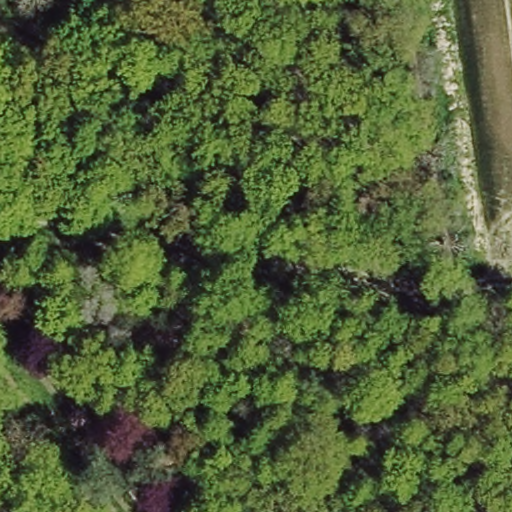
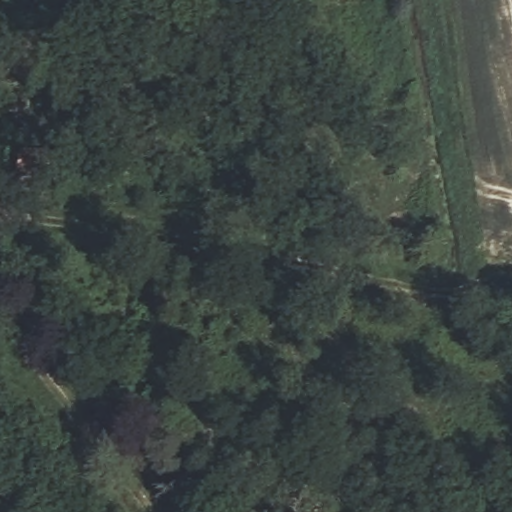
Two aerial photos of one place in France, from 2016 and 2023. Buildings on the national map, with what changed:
unchanged [(101,130),(64,130),(65,108),(102,107),(101,130)]

